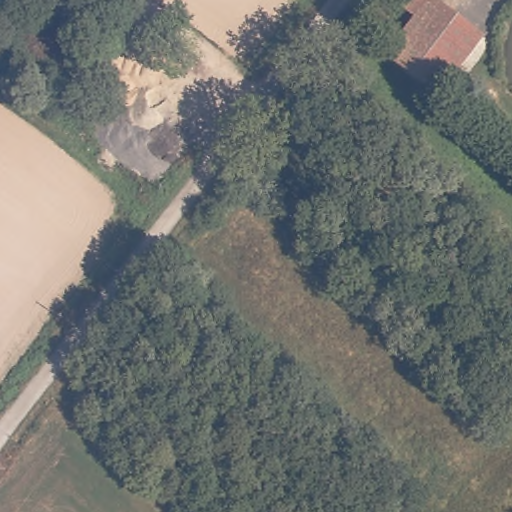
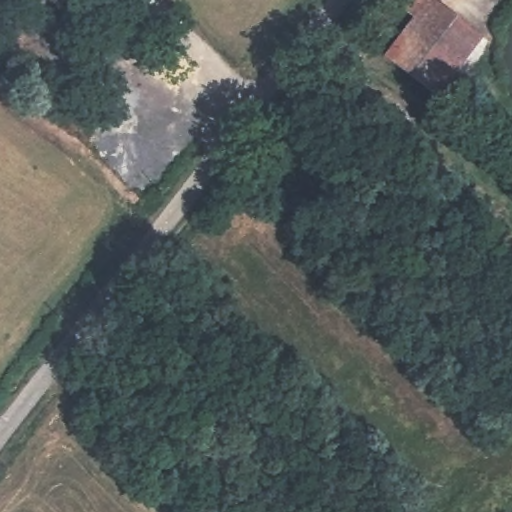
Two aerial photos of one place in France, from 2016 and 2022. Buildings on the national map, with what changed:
unchanged [(435,86),(384,46),(420,0),(447,0),(483,28),(435,86)]

